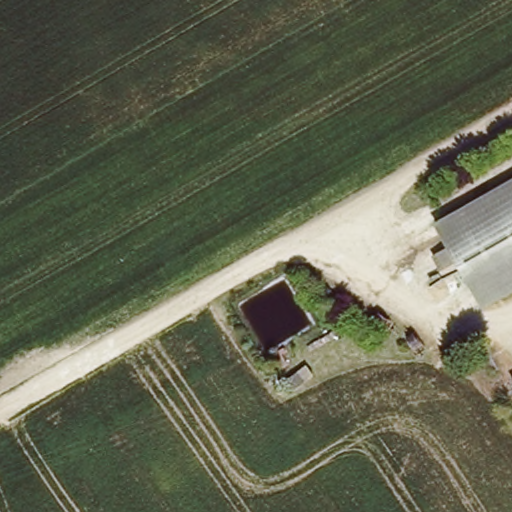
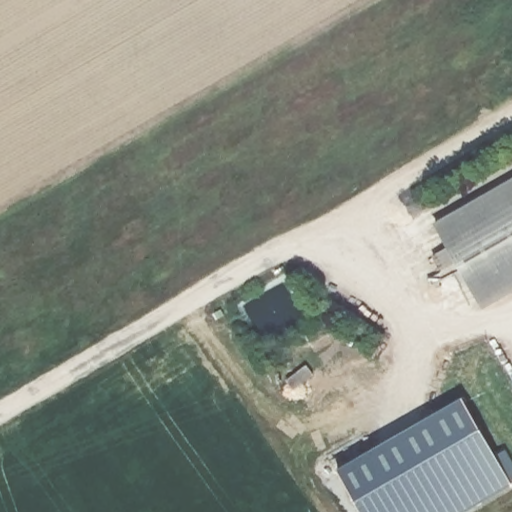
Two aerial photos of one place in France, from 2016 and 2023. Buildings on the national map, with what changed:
unchanged [(454,263),(440,271),(432,257),(446,249),(433,226),(512,181),(512,291),(481,309),(454,263)]
new [(505,450),(512,462),(512,484),(462,512),(361,512),(337,471),(460,397),(496,456),(505,450)]

